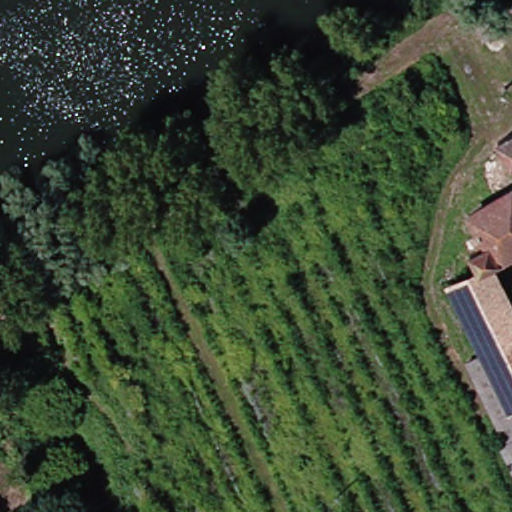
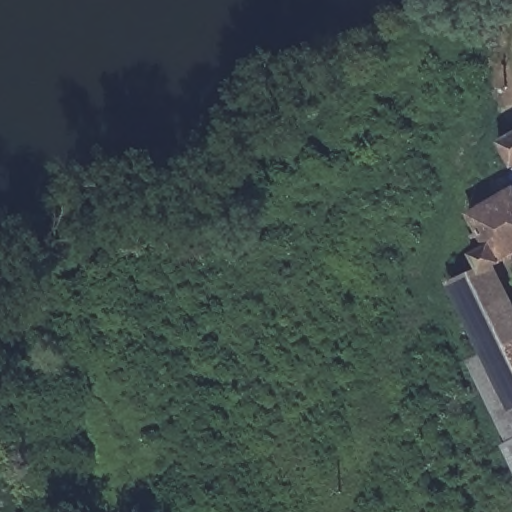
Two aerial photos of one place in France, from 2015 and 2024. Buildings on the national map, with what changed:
unchanged [(512,164),(509,165),(500,142),(512,136),(512,164)]
unchanged [(479,267),(474,257),(492,243),(478,214),(512,199),(512,255),(499,262),(512,292),(512,402),(457,283),(479,267)]

